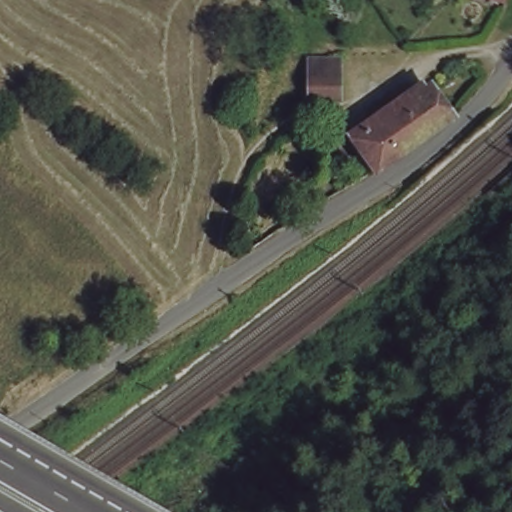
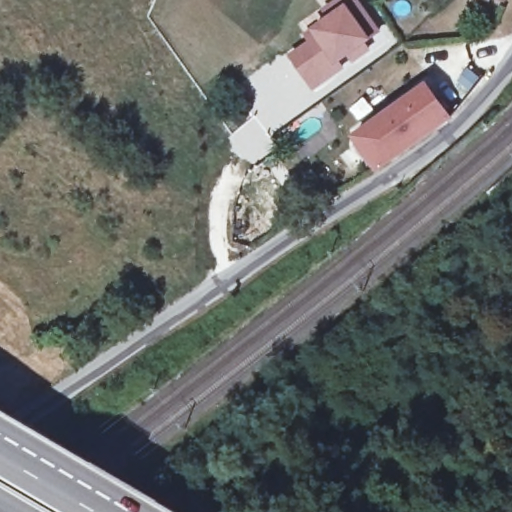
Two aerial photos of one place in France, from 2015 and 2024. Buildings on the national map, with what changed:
new [(304,35),(327,16),(321,8),(332,0),(359,0),(383,31),(368,43),(372,49),(313,92),(287,56),(308,40),(304,35)]
unchanged [(504,0),(502,6),(488,0),(504,0)]
demolished [(312,98),(312,58),(342,58),(342,97),(312,98)]
unchanged [(451,118),(380,169),(357,136),(428,86),(451,118)]

